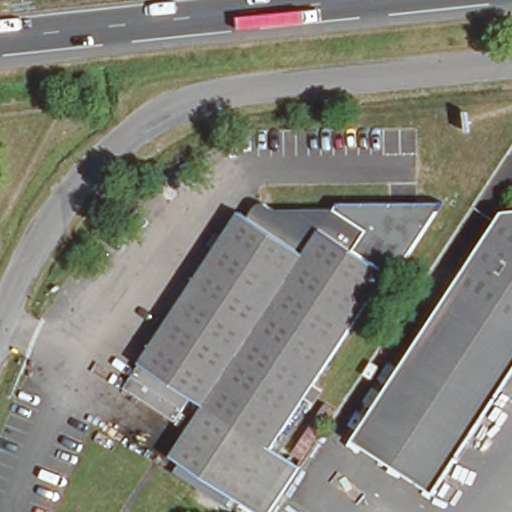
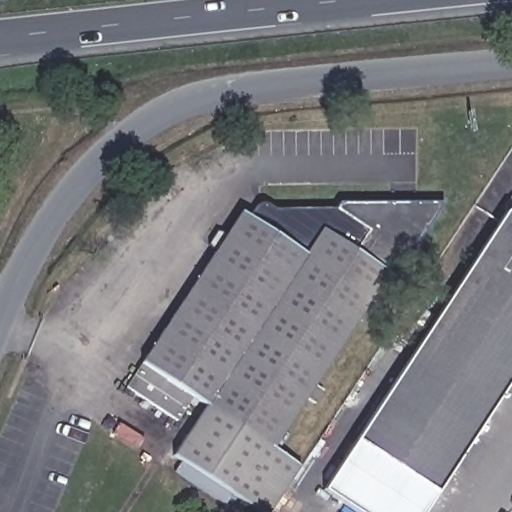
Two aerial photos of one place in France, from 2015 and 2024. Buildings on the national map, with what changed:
unchanged [(333,371),(323,363),(265,445),(205,405),(188,394),(171,417),(120,382),(216,244),(207,240),(217,226),(226,231),(242,206),(252,211),(263,195),(285,207),(337,209),(340,209),(371,229),(364,237),(354,252),(388,272),(337,344),(347,352),(333,371)]
unchanged [(341,202),(446,202),(441,210),(443,213),(410,261),(405,259),(393,275),(388,272),(354,252),(364,237),(371,229),(340,209),(337,209),(341,202)]
unchanged [(512,216),(512,325),(460,291),(512,216)]
unchanged [(512,325),(512,386),(437,497),(356,443),(460,291),(512,325)]
unchanged [(250,512),(170,457),(205,405),(265,445),(296,467),(264,512),(250,512)]
new [(356,512),(323,491),(356,443),(437,497),(425,512),(356,512)]

